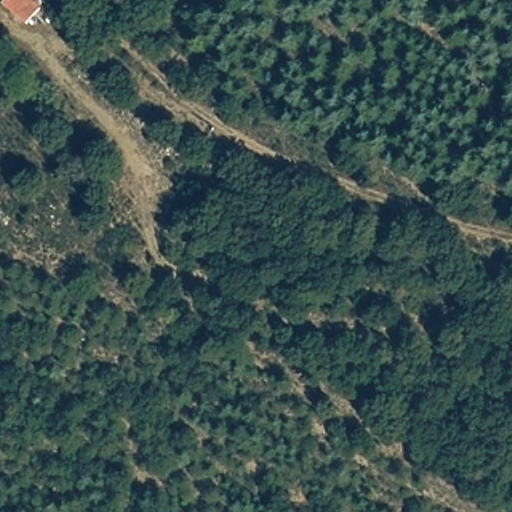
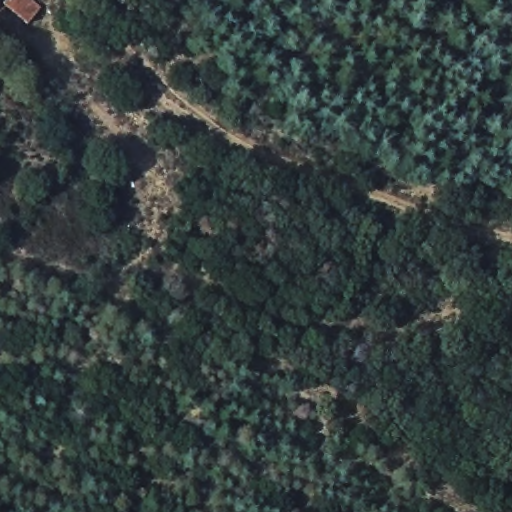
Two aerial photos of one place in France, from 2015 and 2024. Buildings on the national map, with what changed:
unchanged [(31,0),(40,6),(25,24),(0,3),(3,0),(31,0)]

